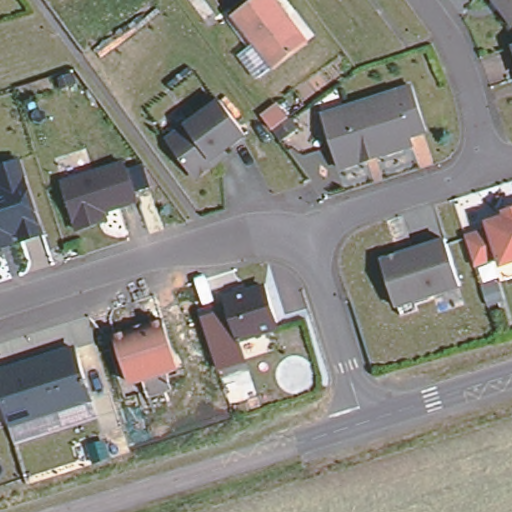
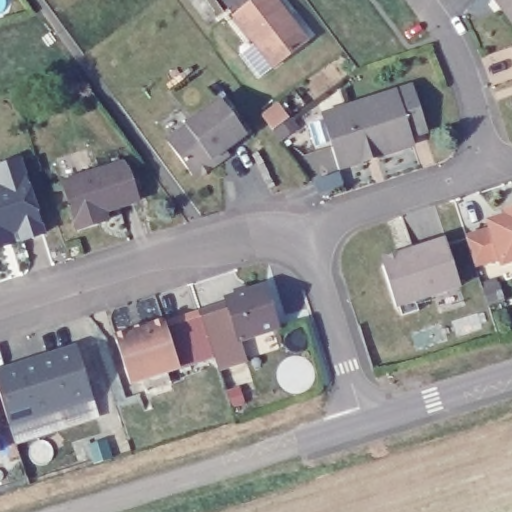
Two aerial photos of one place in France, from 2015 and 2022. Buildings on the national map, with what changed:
unchanged [(256,0),(277,0),(309,42),(274,68),(236,15),(256,0)]
unchanged [(512,0),(512,23),(495,0),(512,0)]
unchanged [(512,51),(512,54),(511,51),(512,51)]
unchanged [(428,135),(338,163),(324,116),(321,109),(341,102),(411,81),(428,135)]
unchanged [(246,135),(213,160),(211,169),(201,176),(193,175),(167,141),(220,101),(246,135)]
unchanged [(273,125),(264,113),(280,101),(289,113),(273,125)]
unchanged [(20,156),(44,230),(23,237),(20,227),(0,234),(0,163),(20,156)]
unchanged [(98,220),(78,226),(63,179),(124,159),(129,165),(139,197),(105,208),(108,217),(98,220)]
unchanged [(492,227),(504,224),(503,221),(512,218),(512,263),(504,265),(503,260),(479,267),(470,241),(494,234),(492,227)]
unchanged [(2,244),(0,244),(0,237),(2,244)]
unchanged [(389,310),(376,269),(381,261),(439,242),(454,289),(389,310)]
unchanged [(274,310),(279,325),(241,337),(228,295),(258,286),(266,283),(274,310)]
unchanged [(174,370),(127,385),(111,337),(159,322),(174,370)]
unchanged [(78,345),(93,393),(11,420),(4,398),(0,385),(0,370),(78,345)]

